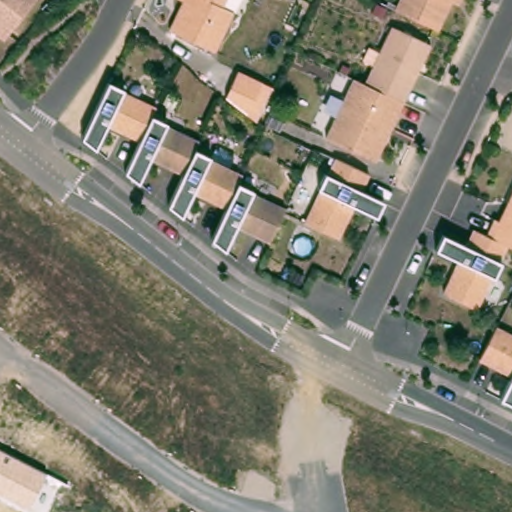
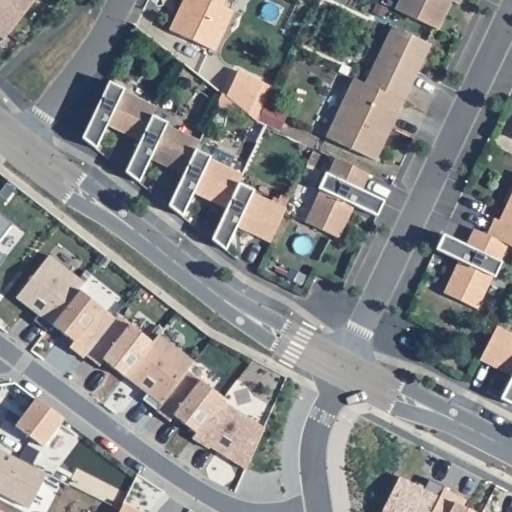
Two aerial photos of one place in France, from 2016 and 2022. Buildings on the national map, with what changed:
unchanged [(7,39),(0,34),(0,0),(36,0),(7,39)]
unchanged [(222,7),(233,12),(215,51),(169,30),(183,0),(225,0),(222,7)]
unchanged [(437,30),(395,9),(399,0),(452,0),(437,30)]
unchanged [(458,3),(452,0),(459,0),(458,3)]
unchanged [(365,84),(392,26),(431,45),(403,102),(365,84)]
new [(238,71),(272,87),(256,121),(226,97),(238,71)]
unchanged [(365,84),(403,102),(375,161),(326,137),(353,78),(365,84)]
unchanged [(108,82),(124,89),(122,92),(156,107),(152,116),(148,123),(140,141),(107,125),(96,150),(82,139),(108,82)]
unchanged [(273,107),(287,113),(279,130),(265,123),(273,107)]
unchanged [(167,122),(166,125),(199,141),(195,149),(195,150),(186,167),(183,174),(151,159),(139,183),(125,172),(140,141),(148,123),(152,116),(167,122)]
unchanged [(168,206),(183,174),(186,167),(195,150),(210,157),(209,159),(242,175),(238,183),(227,206),(227,207),(226,208),(194,192),(182,217),(168,206)]
unchanged [(311,209),(321,189),(318,188),(325,173),(327,175),(336,158),(346,163),(365,172),(368,174),(361,190),(383,201),(377,217),(376,217),(353,206),(338,238),(318,229),(305,222),(311,209)]
unchanged [(254,190),(252,192),(286,209),(281,218),(270,242),(237,227),(225,251),(211,240),(226,208),(227,207),(227,206),(238,183),(254,190)]
unchanged [(493,219),(498,221),(512,192),(512,247),(507,245),(504,244),(486,235),(493,219)]
new [(0,238),(0,213),(12,222),(0,238)]
unchanged [(463,302),(443,293),(458,261),(435,250),(442,234),(466,245),(473,229),(486,235),(504,244),(507,245),(499,261),(502,262),(495,277),(492,276),(482,296),(477,308),(463,302)]
new [(0,263),(0,252),(5,256),(0,263)]
new [(49,255),(84,282),(79,290),(52,324),(47,331),(33,320),(37,314),(16,297),(49,255)]
new [(79,290),(114,317),(85,355),(82,357),(69,347),(74,341),(52,324),(79,290)]
new [(114,317),(116,314),(152,342),(125,376),(125,377),(103,360),(99,365),(85,355),(114,317)]
unchanged [(479,359),(491,336),(496,326),(512,334),(512,376),(479,359)]
new [(152,342),(158,333),(194,362),(187,370),(157,410),(142,399),(147,393),(125,376),(152,342)]
new [(157,410),(187,370),(222,397),(221,400),(196,432),(174,416),(169,421),(156,411),(157,410)]
unchanged [(500,398),(512,376),(512,405),(500,398)]
new [(35,397),(63,418),(42,446),(15,425),(35,397)]
new [(196,432),(221,400),(264,427),(246,469),(209,448),(207,450),(192,437),(196,432)]
unchanged [(30,507),(0,493),(0,450),(47,473),(30,507)]
new [(423,487),(429,477),(444,485),(443,487),(430,512),(380,512),(398,475),(423,487)]
new [(465,499),(462,505),(476,512),(430,512),(443,487),(458,496),(465,499)]
new [(141,512),(119,512),(123,503),(141,512)]
new [(0,512),(0,510),(5,512),(0,512)]

